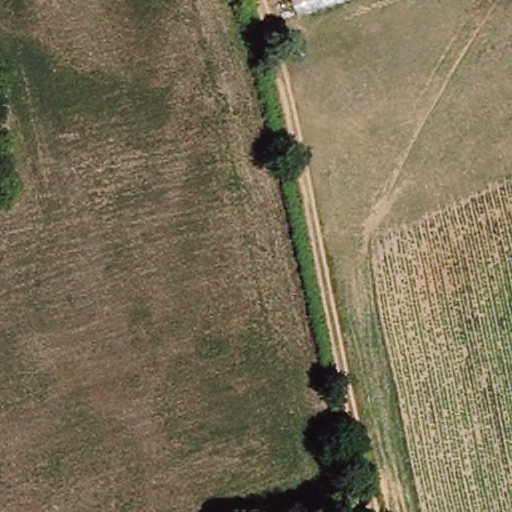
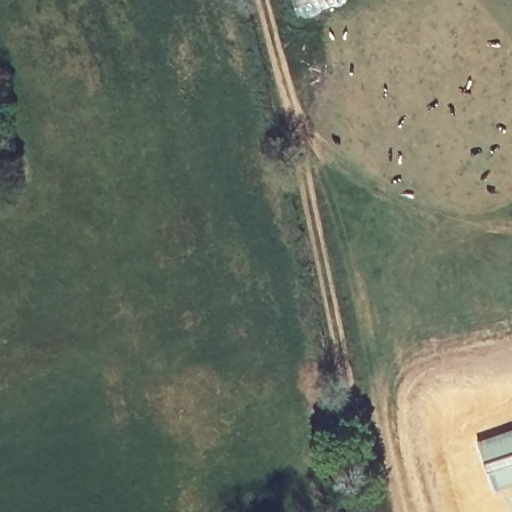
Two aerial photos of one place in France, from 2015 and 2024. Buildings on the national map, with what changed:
unchanged [(360,0),(296,23),(290,0),(360,0)]
new [(512,483),(492,490),(476,442),(512,429),(512,483)]

